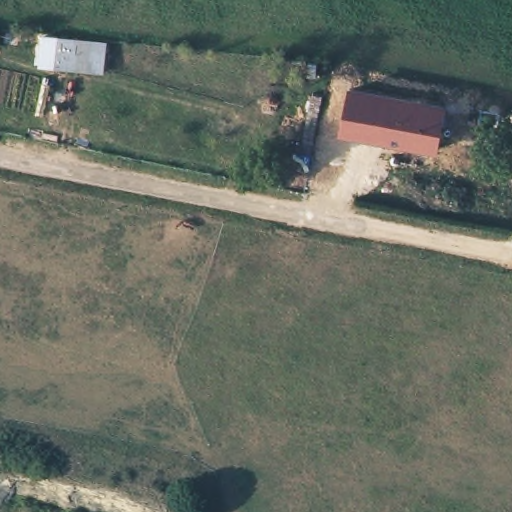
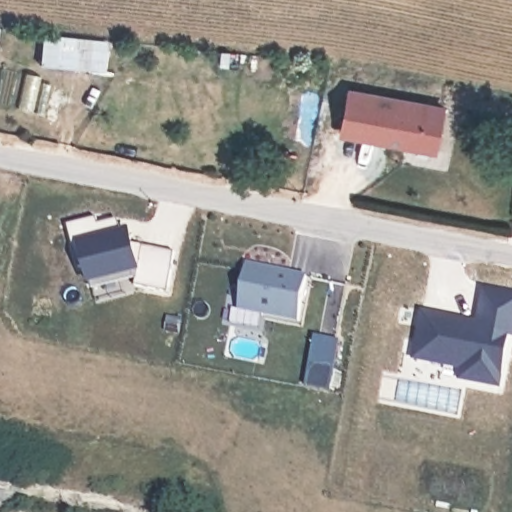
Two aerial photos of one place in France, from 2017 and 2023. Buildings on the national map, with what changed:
unchanged [(105,72),(37,65),(41,33),(107,40),(105,72)]
unchanged [(437,151),(340,133),(348,84),(446,102),(437,151)]
new [(168,292),(135,285),(137,273),(90,285),(84,267),(80,268),(68,226),(97,218),(100,224),(119,219),(122,232),(130,230),(135,244),(175,250),(168,292)]
new [(239,310),(249,263),(307,274),(297,320),(239,310)]
new [(479,322),(485,289),(512,295),(512,334),(508,333),(498,384),(462,377),(464,366),(415,357),(423,312),(448,317),(479,322)]
new [(330,390),(306,386),(315,336),(340,341),(330,390)]

